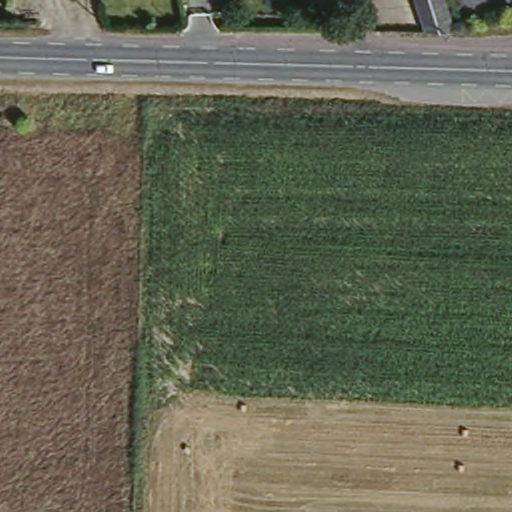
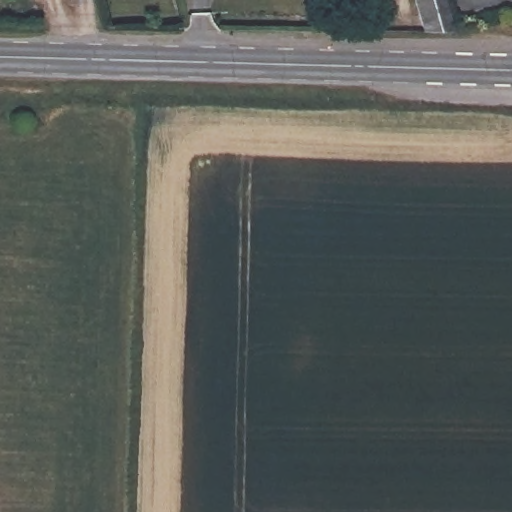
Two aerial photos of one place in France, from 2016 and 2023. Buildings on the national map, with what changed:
unchanged [(422,26),(417,11),(414,0),(442,0),(447,16),(448,20),(445,25),(422,26)]

